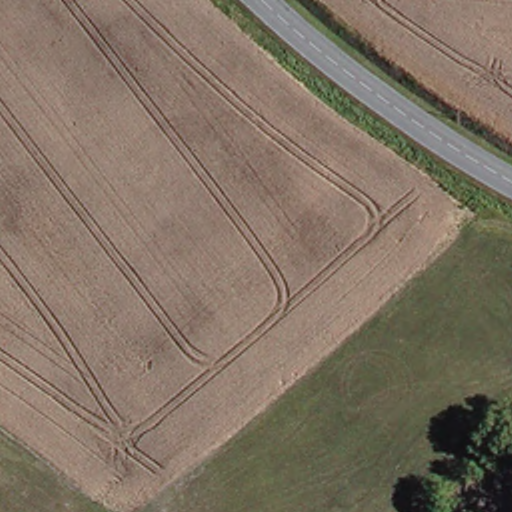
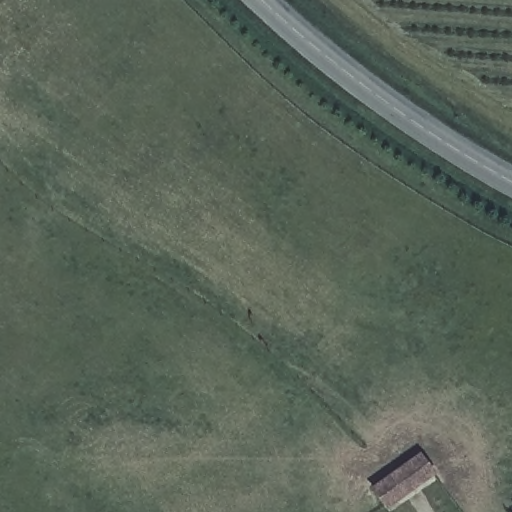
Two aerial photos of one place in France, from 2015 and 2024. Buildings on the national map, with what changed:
new [(385,510),(370,488),(419,452),(435,475),(385,510)]

